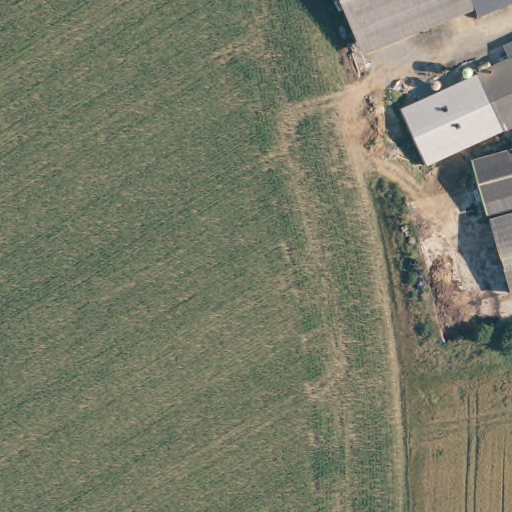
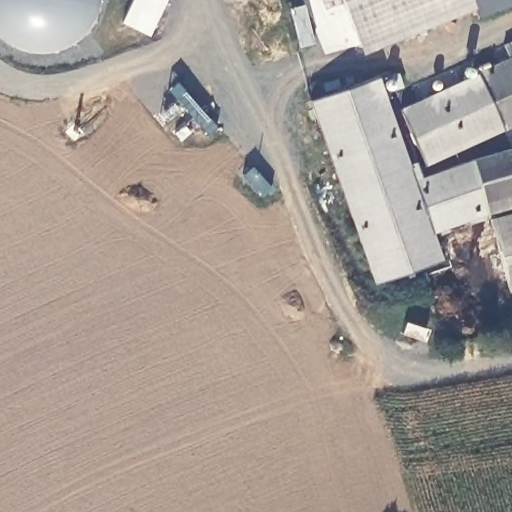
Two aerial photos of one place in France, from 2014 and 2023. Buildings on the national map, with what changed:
unchanged [(475,10),(363,55),(340,0),(512,0),(512,3),(478,17),(475,10)]
unchanged [(476,71),(512,55),(512,129),(502,132),(476,71)]
unchanged [(427,167),(401,108),(476,71),(502,132),(427,167)]
new [(490,213),(433,232),(444,260),(374,286),(307,102),(377,77),(410,164),(415,162),(421,178),(472,159),(490,213)]
unchanged [(472,159),(512,148),(512,207),(490,213),(472,159)]
unchanged [(490,213),(512,207),(512,285),(506,286),(490,213)]

